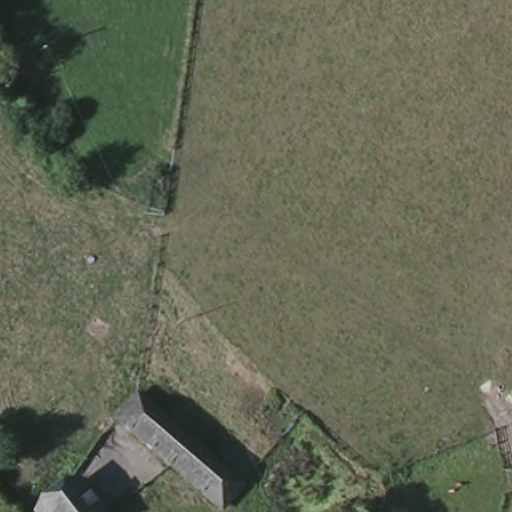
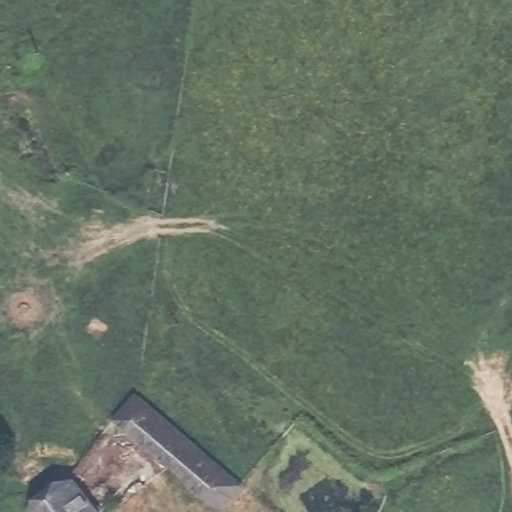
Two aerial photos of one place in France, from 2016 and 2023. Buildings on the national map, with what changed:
unchanged [(241,483),(215,510),(113,411),(139,386),(241,483)]
unchanged [(99,512),(40,512),(79,484),(99,512)]

